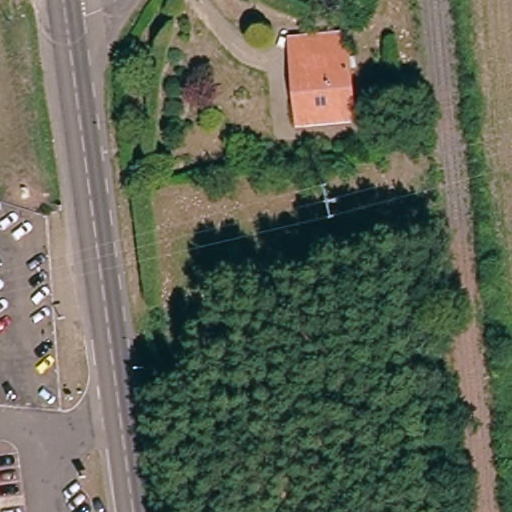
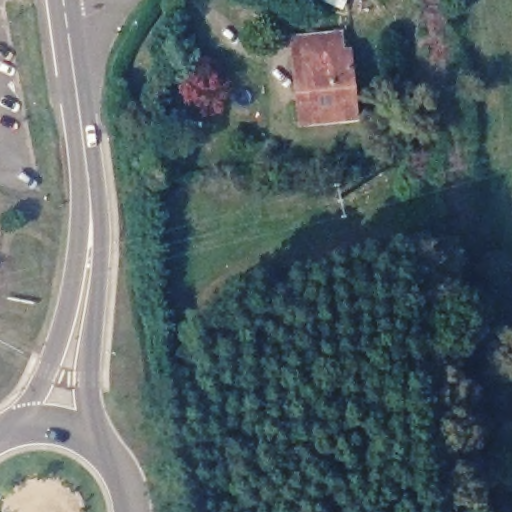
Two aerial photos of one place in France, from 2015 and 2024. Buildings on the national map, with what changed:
unchanged [(341,54),(349,53),(355,118),(299,124),(297,104),(291,42),(300,40),(340,35),(341,54)]

